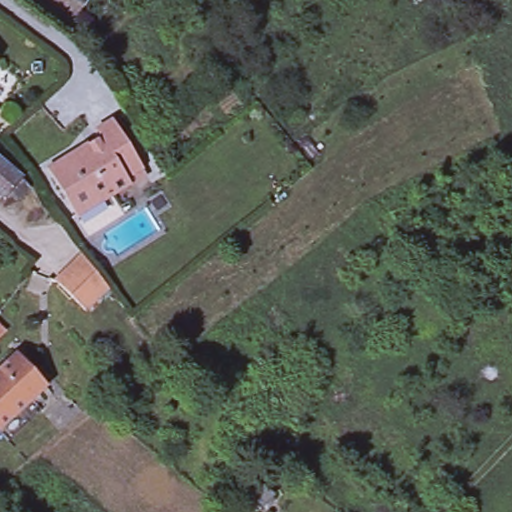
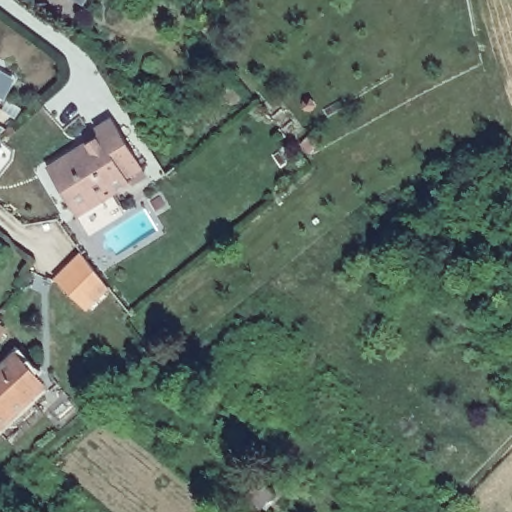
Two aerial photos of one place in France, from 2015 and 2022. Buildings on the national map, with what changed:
unchanged [(319,56),(309,62),(302,52),(312,46),(319,56)]
unchanged [(92,133),(115,118),(147,166),(77,210),(45,161),(92,133)]
unchanged [(18,172),(4,189),(0,185),(0,157),(18,172)]
unchanged [(88,305),(84,309),(55,279),(68,266),(81,253),(82,255),(110,291),(101,299),(92,308),(88,305)]
unchanged [(35,373),(29,378),(40,390),(30,399),(35,403),(1,434),(0,433),(0,367),(15,353),(35,373)]
unchanged [(273,494),(260,509),(245,495),(257,481),(273,494)]

